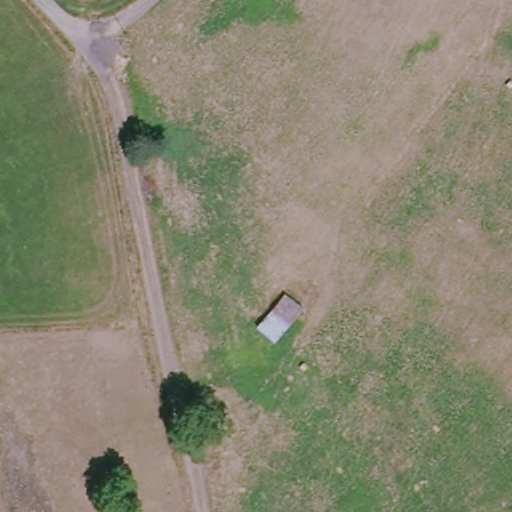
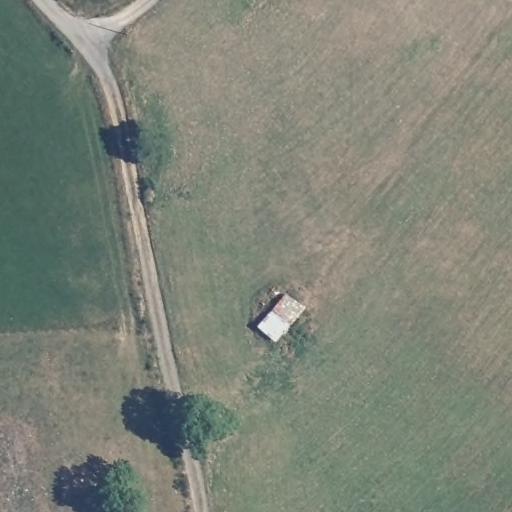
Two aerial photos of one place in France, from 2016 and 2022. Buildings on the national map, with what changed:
unchanged [(304,311),(274,346),(255,330),(286,296),(304,311)]

